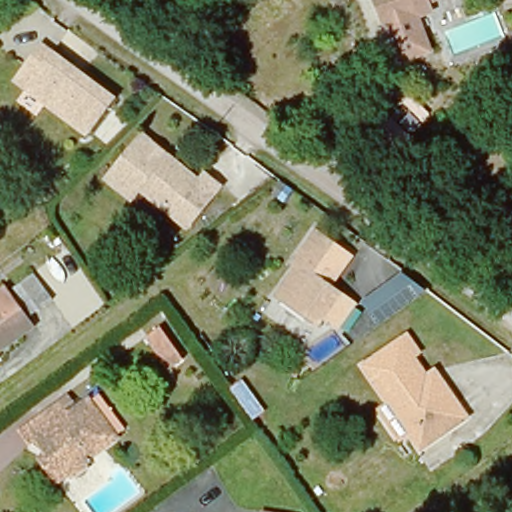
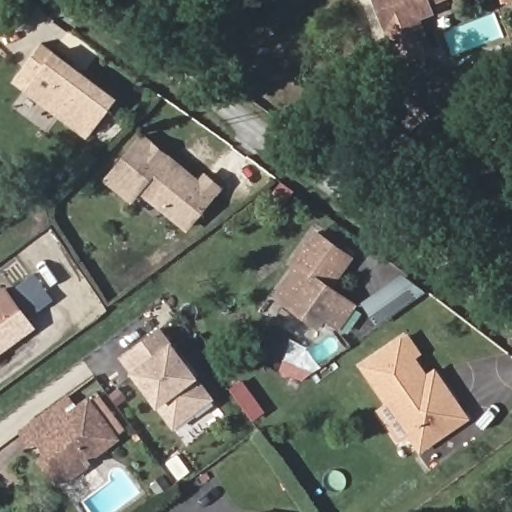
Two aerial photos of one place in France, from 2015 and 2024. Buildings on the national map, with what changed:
unchanged [(432,11),(420,15),(435,52),(395,66),(369,0),(430,0),(427,1),(432,11)]
unchanged [(81,142),(20,98),(7,89),(31,54),(44,63),(105,107),(81,142)]
unchanged [(196,180),(202,173),(220,186),(187,226),(139,189),(132,197),(106,176),(137,135),(196,180)]
unchanged [(327,290),(354,310),(338,331),(320,317),(314,325),(276,297),(297,268),(292,265),(315,236),(348,261),(327,290)]
unchanged [(400,271),(424,290),(373,323),(360,297),(400,271)]
unchanged [(30,272),(49,296),(35,306),(17,281),(30,272)]
unchanged [(4,293),(31,332),(0,354),(0,296),(4,293)]
demolished [(180,350),(167,358),(149,333),(162,324),(180,350)]
new [(174,429),(159,407),(130,371),(120,356),(161,326),(172,341),(199,376),(215,398),(174,429)]
unchanged [(382,403),(358,370),(394,345),(403,338),(415,356),(406,362),(417,380),(428,372),(437,386),(460,420),(415,451),(405,436),(395,442),(373,410),(382,403)]
unchanged [(22,436),(69,402),(78,416),(89,407),(116,442),(59,485),(47,469),(33,450),(22,436)]

